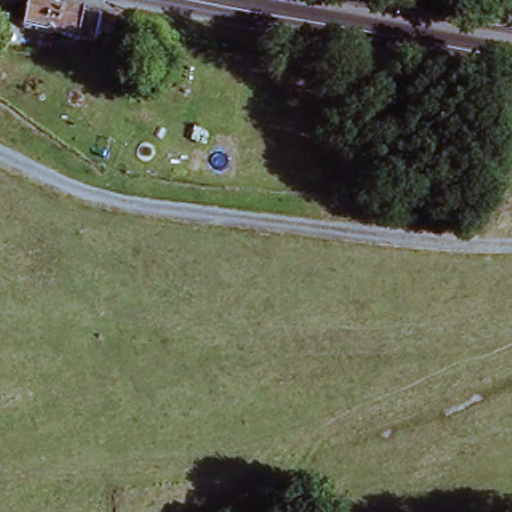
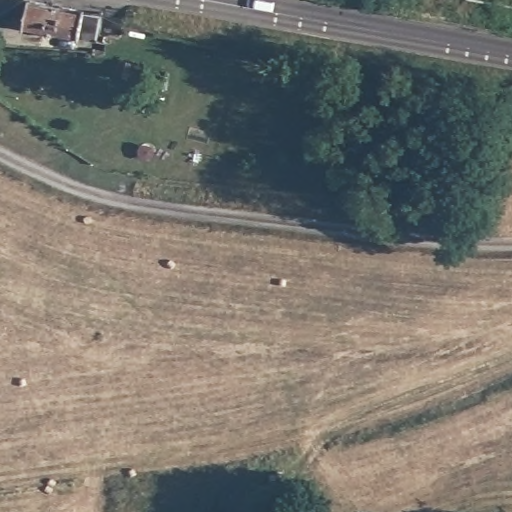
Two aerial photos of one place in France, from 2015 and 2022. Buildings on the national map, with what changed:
unchanged [(22,33),(29,0),(37,0),(87,9),(81,44),(22,33)]

